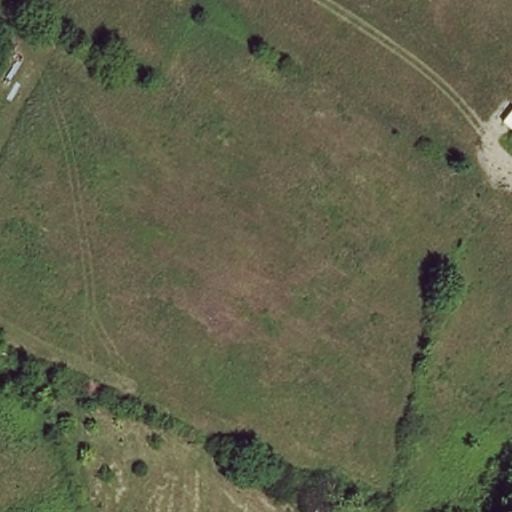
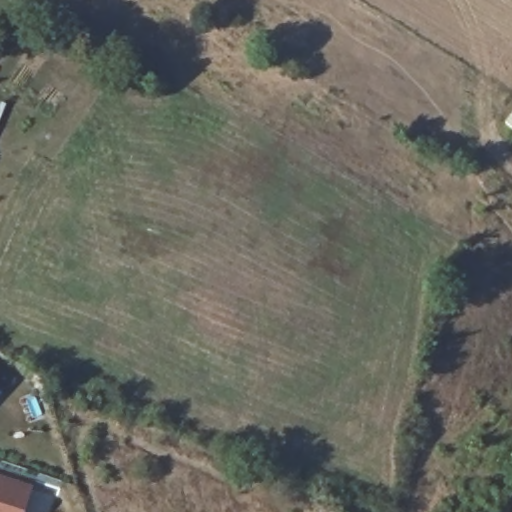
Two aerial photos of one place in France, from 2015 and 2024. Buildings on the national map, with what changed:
new [(23,512),(0,512),(0,476),(31,487),(23,512)]

